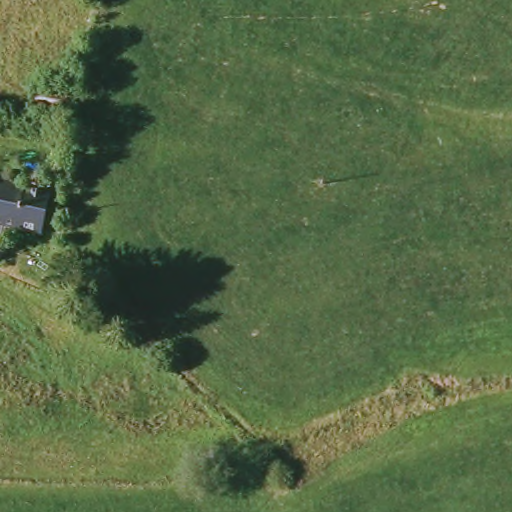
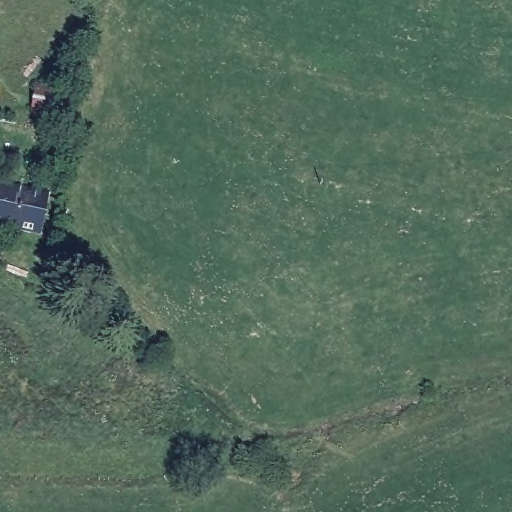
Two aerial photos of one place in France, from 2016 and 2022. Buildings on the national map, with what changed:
unchanged [(68,131),(62,129),(57,128),(28,120),(34,99),(62,113),(67,115),(72,118),(68,131)]
unchanged [(0,228),(0,191),(52,200),(47,237),(0,228)]

